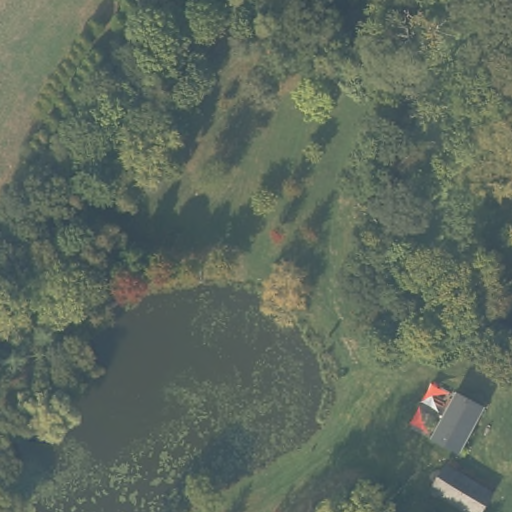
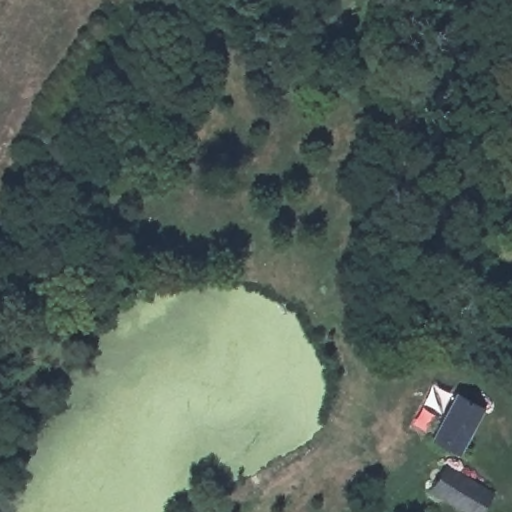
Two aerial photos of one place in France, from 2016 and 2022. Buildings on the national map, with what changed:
unchanged [(481,403),(455,448),(428,433),(455,388),(481,403)]
unchanged [(492,490),(479,512),(471,512),(428,486),(444,460),(492,490)]

